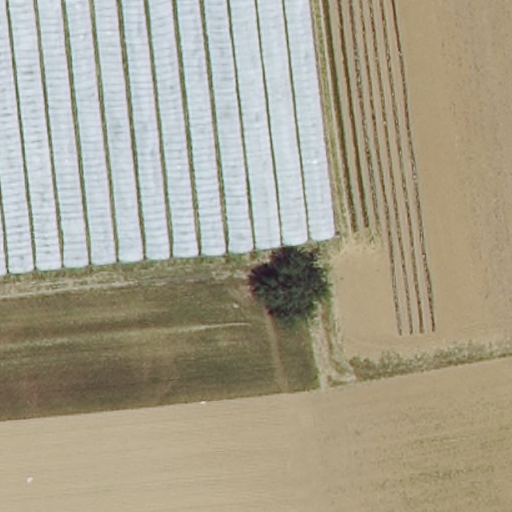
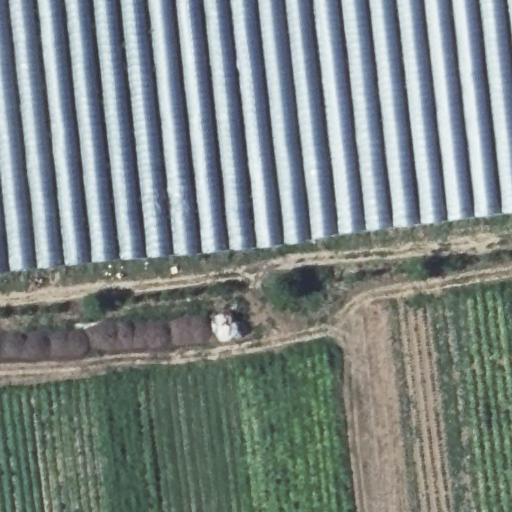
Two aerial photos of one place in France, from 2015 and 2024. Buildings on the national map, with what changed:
unchanged [(259,257),(0,283),(0,0),(231,0),(259,257)]
new [(259,257),(231,0),(512,0),(512,224),(259,257)]

